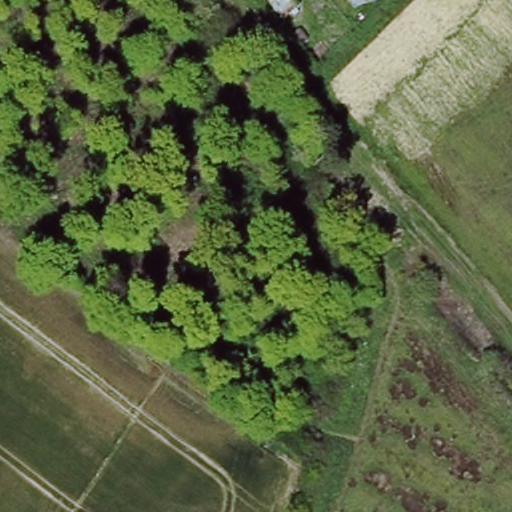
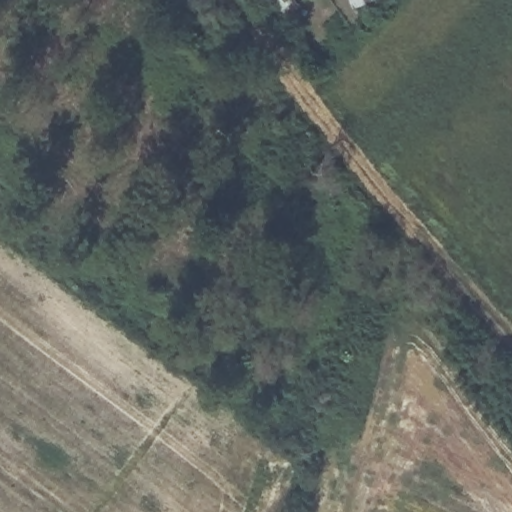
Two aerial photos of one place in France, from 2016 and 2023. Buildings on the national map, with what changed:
[]

